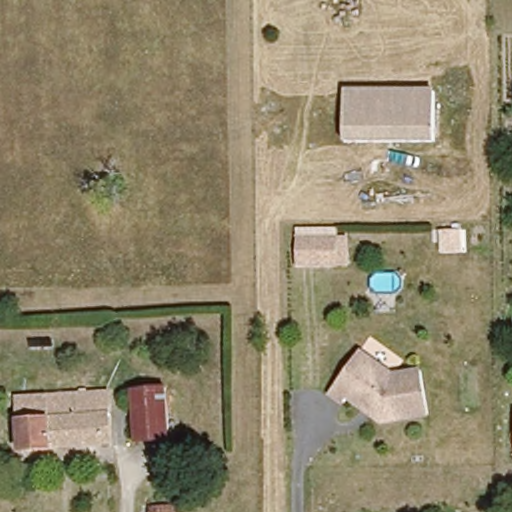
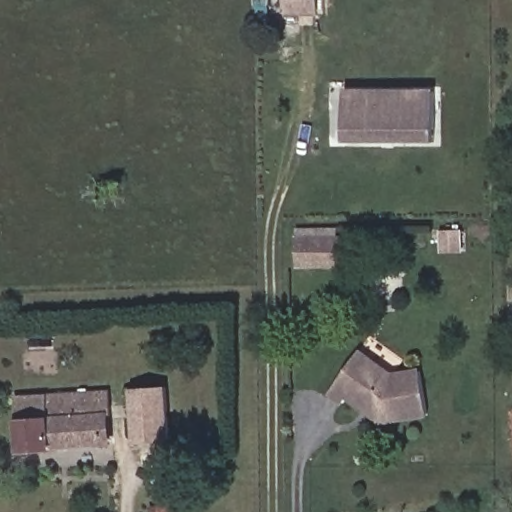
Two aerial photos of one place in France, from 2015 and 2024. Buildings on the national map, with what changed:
new [(286,17),(286,0),(319,0),(319,16),(286,17)]
unchanged [(435,89),(436,139),(346,139),(345,89),(435,89)]
unchanged [(439,242),(438,226),(465,227),(466,242),(439,242)]
unchanged [(301,234),(326,234),(342,234),(342,269),(326,269),(301,269),(301,234)]
unchanged [(349,358),(389,377),(410,369),(424,408),(388,423),(349,408),(345,417),(325,407),(349,358)]
unchanged [(126,389),(143,388),(158,387),(168,386),(171,439),(161,439),(129,442),(126,389)]
unchanged [(108,419),(101,419),(102,448),(16,453),(13,401),(107,395),(108,419)]
unchanged [(154,507),(154,498),(177,498),(177,507),(177,512),(154,512),(154,507)]

